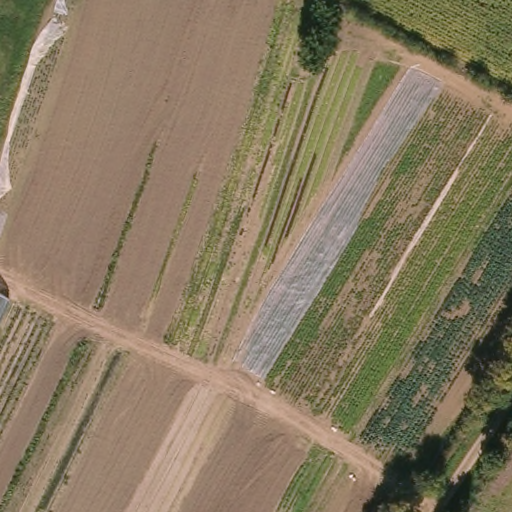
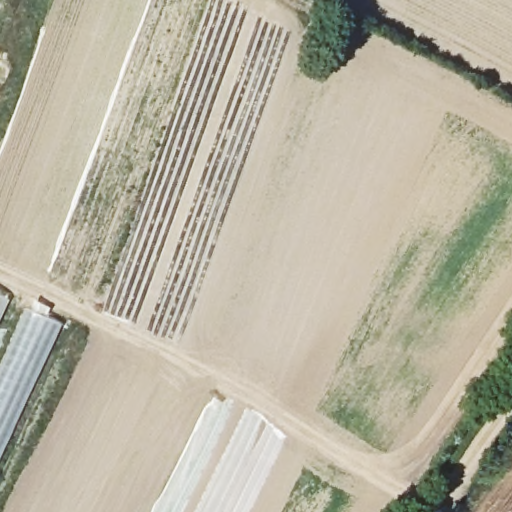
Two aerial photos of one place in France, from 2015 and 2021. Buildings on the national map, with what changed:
unchanged [(7,300),(0,316),(0,297),(7,300)]
new [(27,310),(59,325),(0,453),(0,371),(27,310)]

